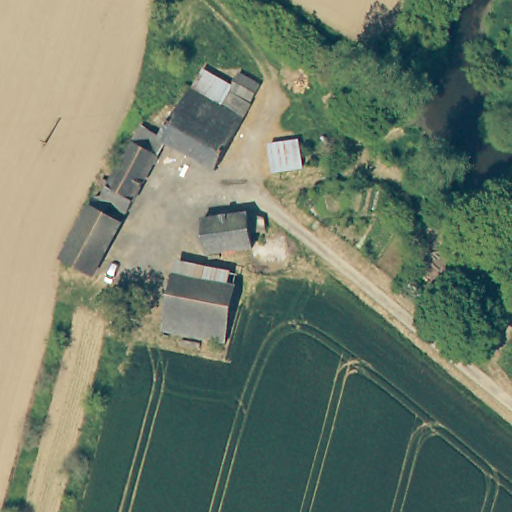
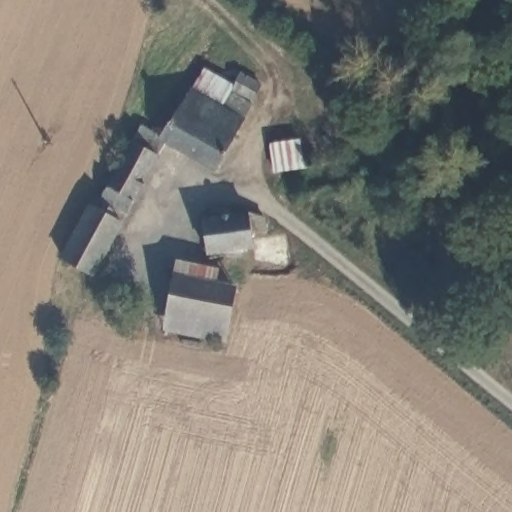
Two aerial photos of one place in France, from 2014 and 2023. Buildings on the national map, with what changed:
unchanged [(219,109),(218,110),(190,93),(206,65),(237,82),(241,76),(261,87),(243,123),(219,109)]
unchanged [(218,110),(219,109),(243,123),(213,175),(167,145),(160,142),(187,91),(190,93),(218,110)]
unchanged [(127,215),(111,206),(104,219),(122,229),(93,279),(65,262),(98,202),(105,200),(143,131),(160,142),(167,145),(127,215)]
unchanged [(288,141),(292,166),(262,170),(259,146),(288,141)]
unchanged [(205,252),(203,217),(248,214),(254,219),(264,219),(264,227),(264,234),(251,234),(252,249),(205,252)]
unchanged [(179,269),(239,280),(228,334),(169,324),(179,269)]

